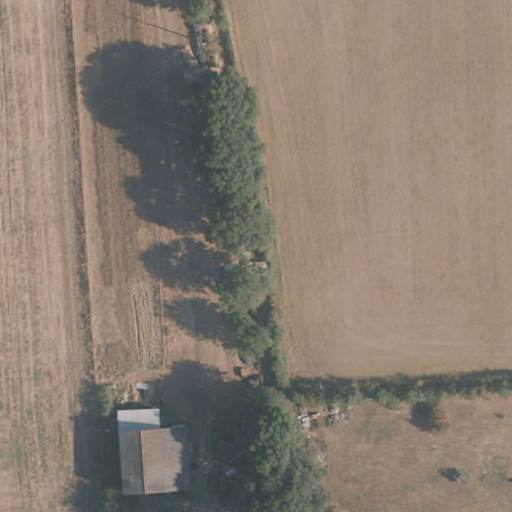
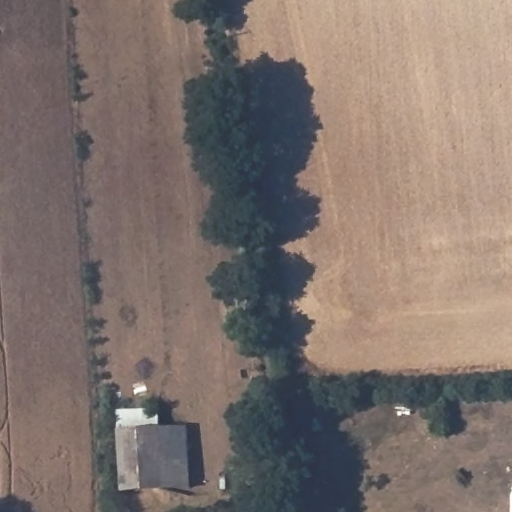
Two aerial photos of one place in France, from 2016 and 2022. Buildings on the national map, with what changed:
unchanged [(185,428),(189,487),(124,492),(119,432),(185,428)]

